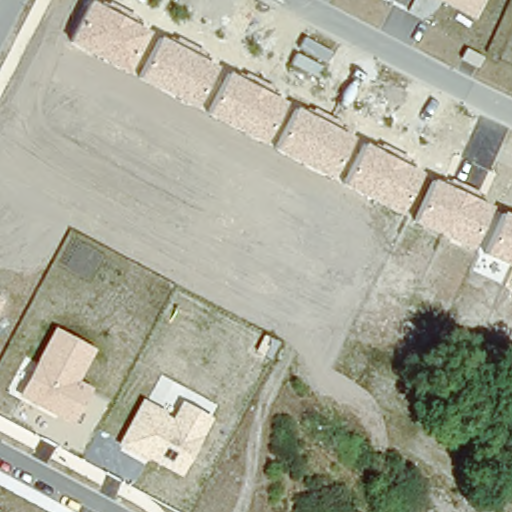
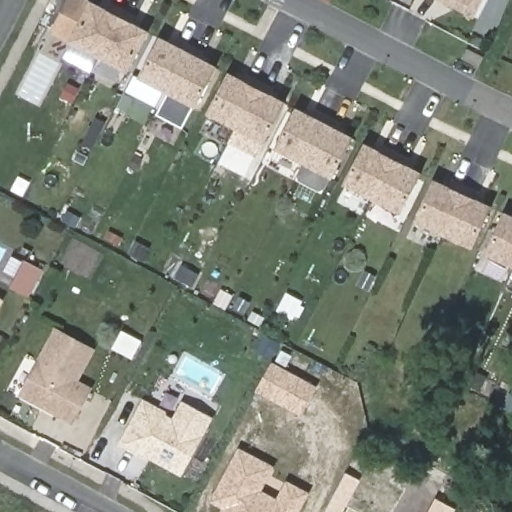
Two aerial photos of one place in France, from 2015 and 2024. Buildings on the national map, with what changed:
unchanged [(474,17),(442,0),(484,0),(474,17)]
unchanged [(136,21),(142,24),(141,26),(150,30),(129,72),(70,42),(91,1),(100,5),(102,1),(110,5),(111,2),(137,16),(136,21)]
unchanged [(203,56),(209,59),(207,61),(217,66),(196,107),(139,78),(160,35),(172,41),(173,37),(179,40),(180,37),(206,51),(203,56)]
unchanged [(273,92),(278,95),(277,98),(286,101),(265,142),(209,114),(230,73),(239,77),(241,72),(248,75),(249,73),(275,86),(273,92)]
unchanged [(341,127),(347,130),(346,134),(353,137),(334,179),(275,150),(297,109),(306,112),(309,107),(315,110),(316,109),(343,122),(341,127)]
unchanged [(409,161),(415,165),(414,169),(422,173),(402,215),(345,185),(366,144),(373,147),(375,144),(382,147),(384,145),(411,158),(409,161)]
unchanged [(478,196),(486,200),(485,204),(493,206),(474,249),(416,221),(434,180),(444,183),(445,179),(452,182),(454,178),(481,191),(478,196)]
unchanged [(487,254),(505,212),(512,216),(512,266),(487,254)]
new [(24,262),(45,273),(31,299),(10,288),(24,262)]
unchanged [(0,308),(0,298),(5,300),(0,308)]
unchanged [(80,380),(94,388),(74,426),(19,395),(56,327),(97,350),(80,380)]
new [(272,362),(317,387),(301,417),(255,392),(272,362)]
unchanged [(184,401),(215,418),(182,477),(150,458),(148,461),(119,445),(144,400),(173,417),(184,401)]
new [(275,467),(262,490),(277,498),(287,480),(309,492),(299,512),(220,512),(223,507),(210,501),(239,447),(275,467)]

